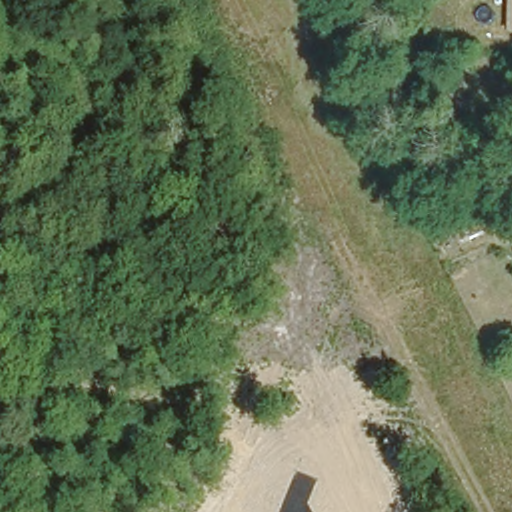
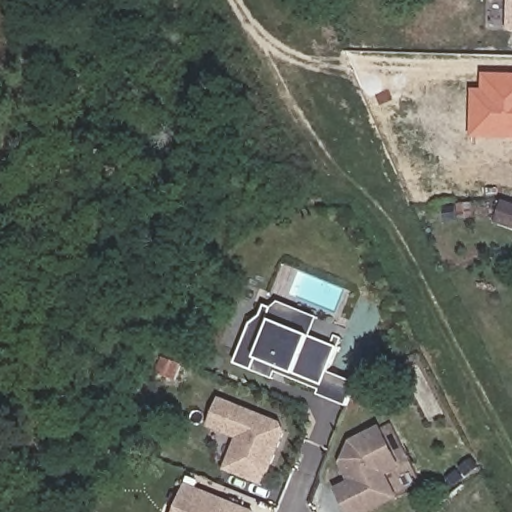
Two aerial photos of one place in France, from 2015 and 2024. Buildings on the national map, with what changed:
unchanged [(506,0),(512,0),(512,28),(503,27),(506,0)]
new [(484,73),(512,75),(512,140),(472,138),(473,89),(484,90),(484,73)]
new [(512,206),(512,227),(495,221),(502,202),(512,206)]
demolished [(512,206),(512,211),(510,210),(512,206)]
new [(275,373),(272,379),(235,364),(249,323),(259,317),(264,305),(272,308),(278,301),(317,317),(310,337),(330,344),(333,335),(341,337),(338,348),(329,371),(356,382),(346,406),(319,394),(320,389),(275,373)]
new [(207,427),(219,396),(279,422),(285,433),(264,486),(223,468),(236,437),(207,427)]
new [(402,467),(388,475),(399,498),(371,512),(347,512),(336,487),(349,481),(341,462),(351,439),(380,426),(402,467)]
new [(184,483),(256,511),(256,512),(174,512),(184,483)]

